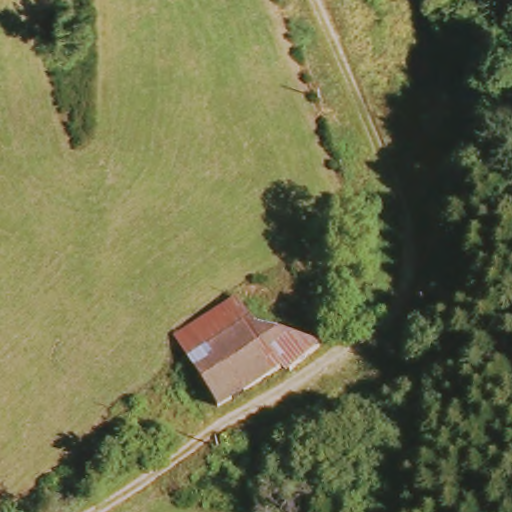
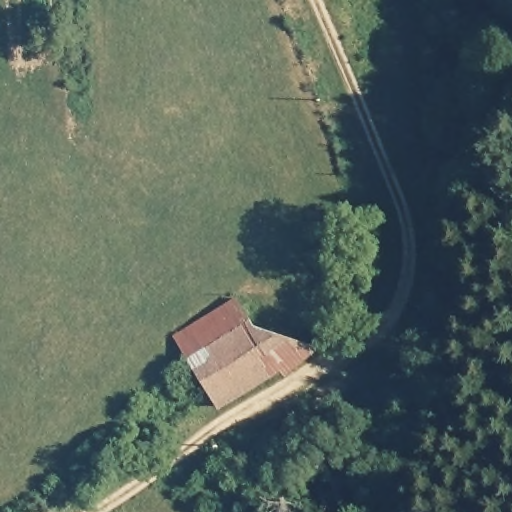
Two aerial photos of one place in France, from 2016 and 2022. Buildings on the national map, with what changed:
unchanged [(182,351),(240,315),(262,342),(333,346),(224,419),(182,351)]

